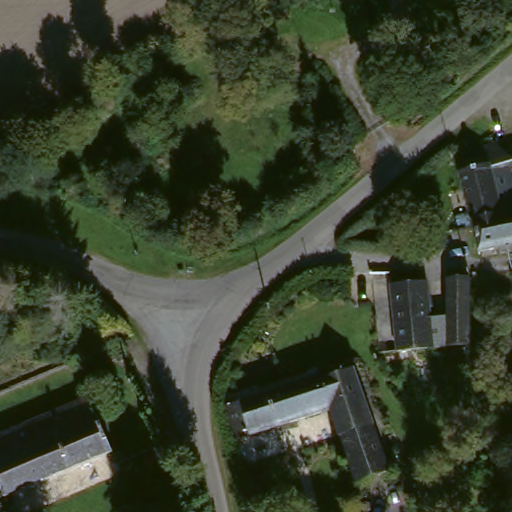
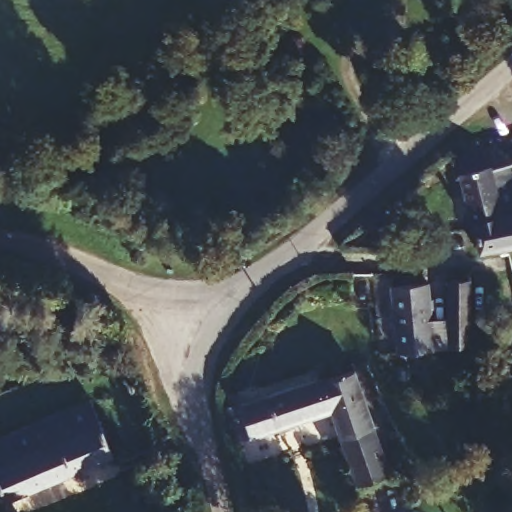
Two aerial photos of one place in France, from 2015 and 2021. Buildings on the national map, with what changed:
unchanged [(454,157),(461,156),(491,149),(507,169),(488,173),(499,223),(512,220),(512,246),(472,254),(454,157)]
unchanged [(471,328),(469,348),(449,347),(443,285),(466,283),(471,328)]
unchanged [(427,350),(393,352),(389,290),(423,287),(427,350)]
unchanged [(351,375),(389,472),(358,482),(329,411),(239,445),(229,416),(316,383),(351,375)]
unchanged [(98,397),(120,452),(0,502),(0,437),(98,397)]

